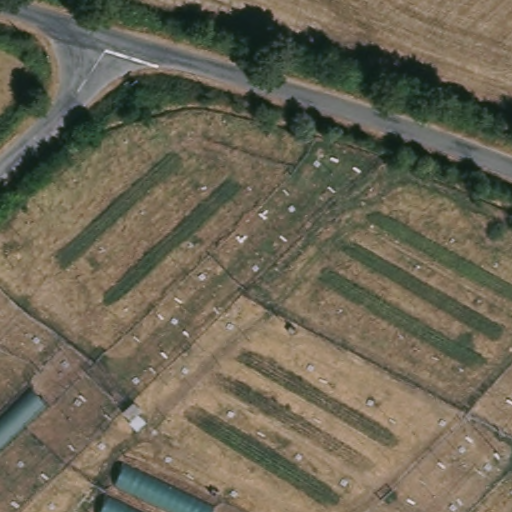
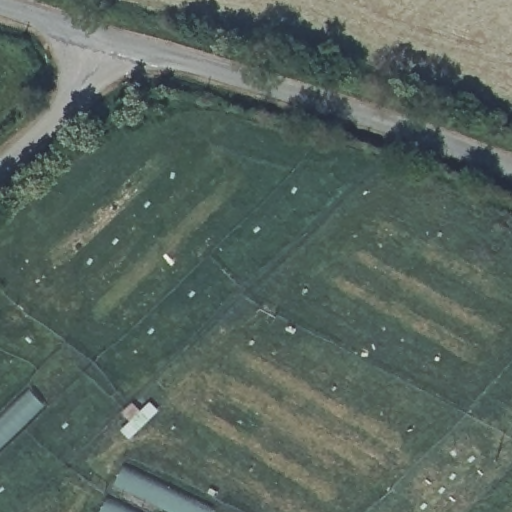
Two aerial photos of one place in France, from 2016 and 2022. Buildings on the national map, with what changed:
unchanged [(0,449),(0,408),(25,386),(48,403),(0,449)]
unchanged [(120,512),(138,476),(208,503),(205,512),(120,512)]

